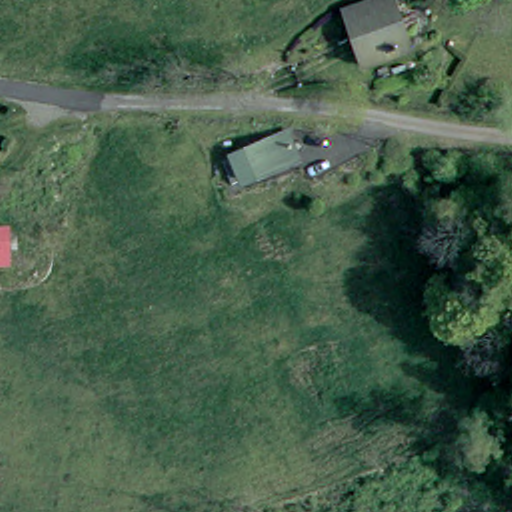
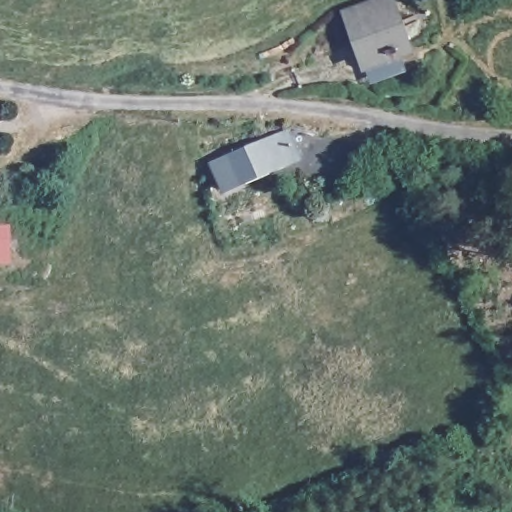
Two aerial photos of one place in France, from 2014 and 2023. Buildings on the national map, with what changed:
unchanged [(357,57),(340,12),(371,0),(389,0),(405,46),(407,49),(361,67),(357,57)]
unchanged [(222,162),(233,158),(287,137),(297,162),(242,182),(232,185),(222,162)]
unchanged [(0,231),(7,231),(7,258),(7,268),(0,268),(0,231)]

